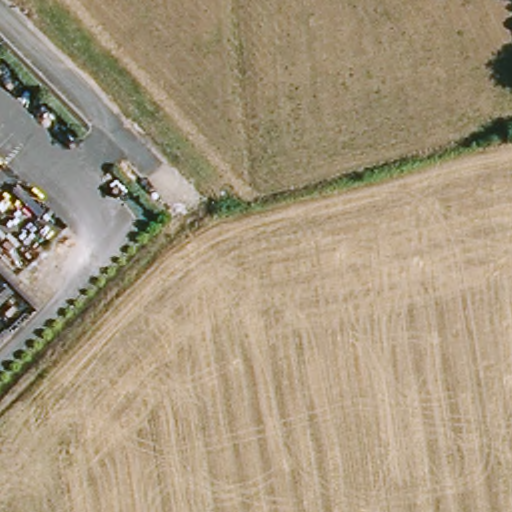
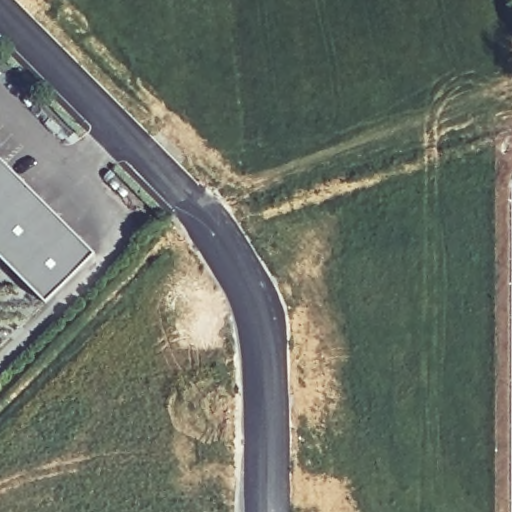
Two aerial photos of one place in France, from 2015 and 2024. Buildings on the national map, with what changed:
new [(93,252),(47,302),(0,256),(0,157),(93,252)]

